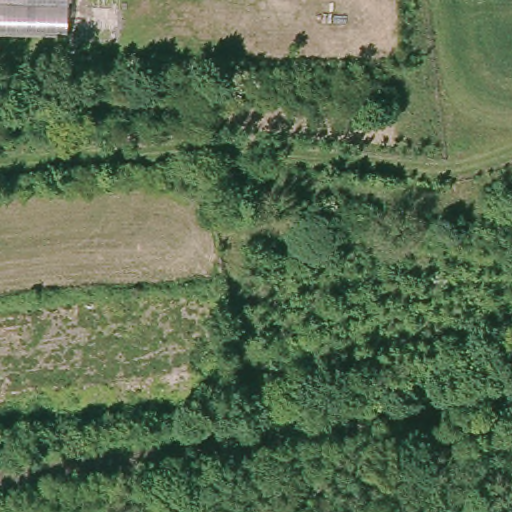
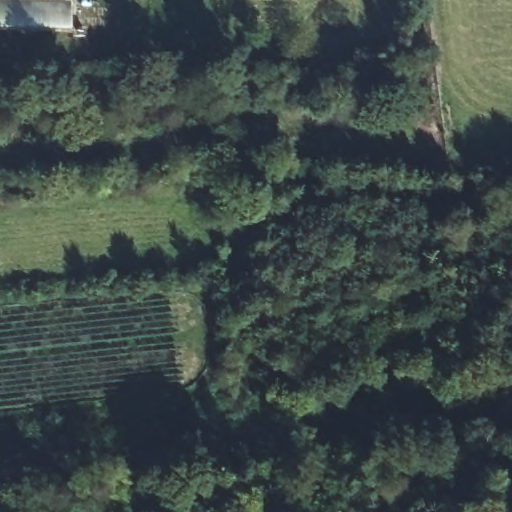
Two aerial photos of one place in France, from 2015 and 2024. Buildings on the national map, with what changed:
unchanged [(72,32),(0,30),(0,0),(72,0),(72,32)]

